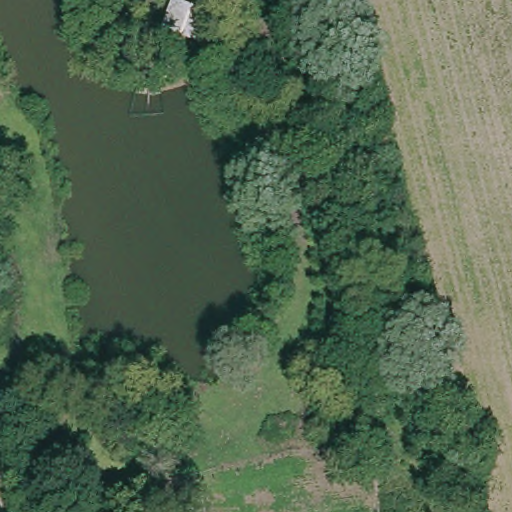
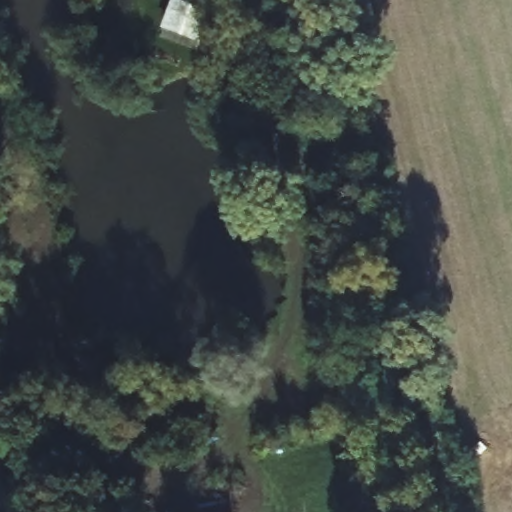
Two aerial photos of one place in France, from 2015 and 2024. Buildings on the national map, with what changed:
unchanged [(161,26),(171,0),(178,0),(211,12),(199,41),(161,26)]

